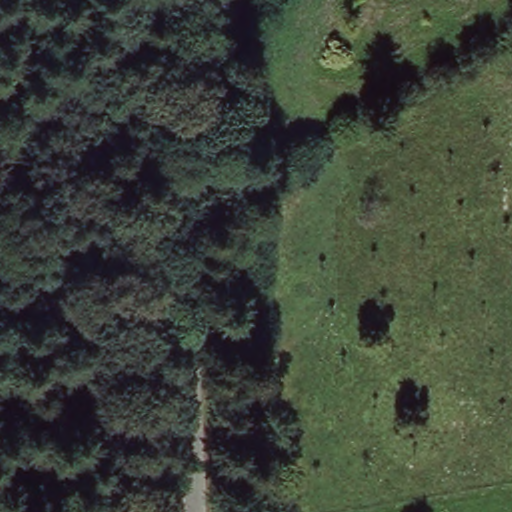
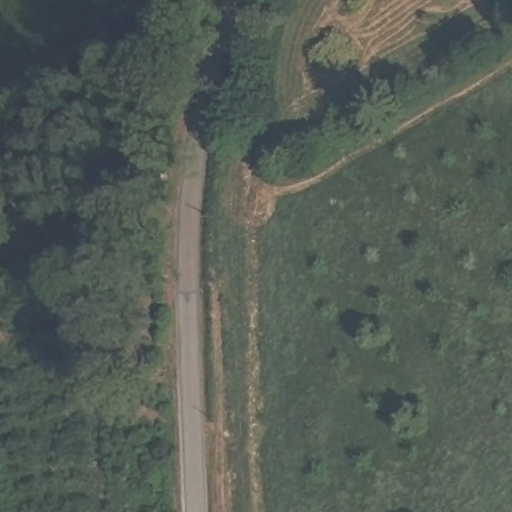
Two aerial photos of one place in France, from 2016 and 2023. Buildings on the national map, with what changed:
[]

